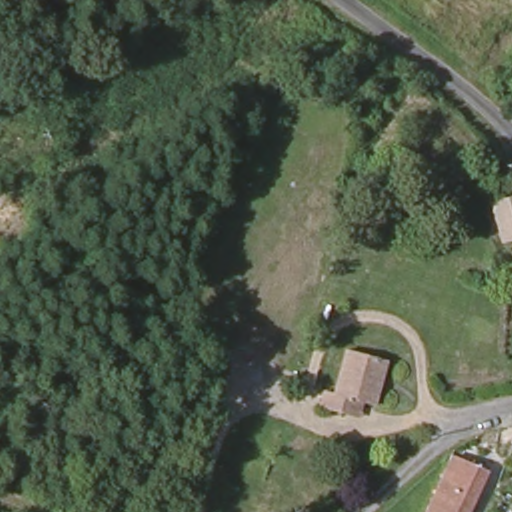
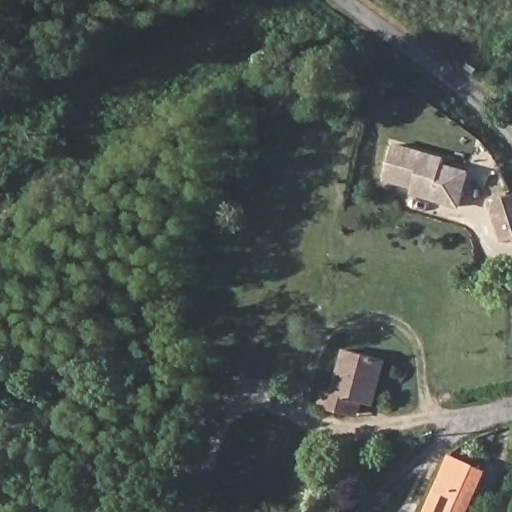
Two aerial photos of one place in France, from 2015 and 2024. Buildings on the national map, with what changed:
new [(460,209),(411,195),(412,190),(384,182),(394,143),(446,158),(444,165),(470,173),(460,209)]
unchanged [(502,238),(491,200),(512,194),(512,235),(502,238)]
unchanged [(341,414),(318,407),(324,390),(332,393),(345,350),(382,361),(369,403),(360,401),(355,418),(341,414)]
unchanged [(481,472),(463,512),(426,512),(451,461),(481,472)]

